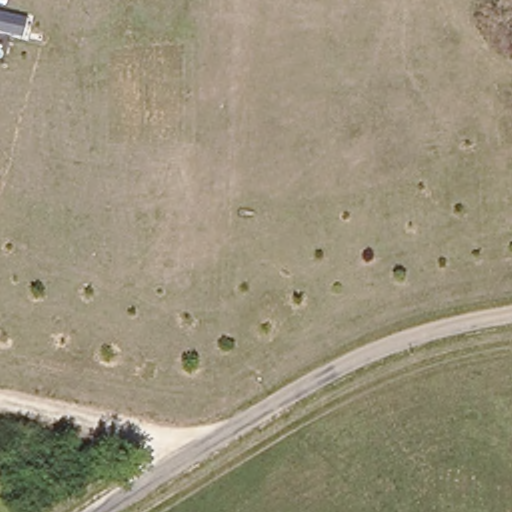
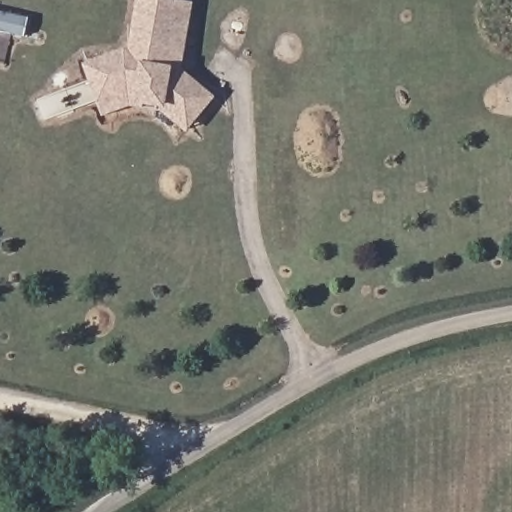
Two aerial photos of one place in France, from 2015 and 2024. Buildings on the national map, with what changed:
new [(212,97),(190,124),(165,105),(139,102),(106,112),(90,66),(123,52),(133,54),(140,0),(159,0),(191,4),(183,67),(212,97)]
new [(0,31),(0,11),(29,17),(25,37),(0,31)]

